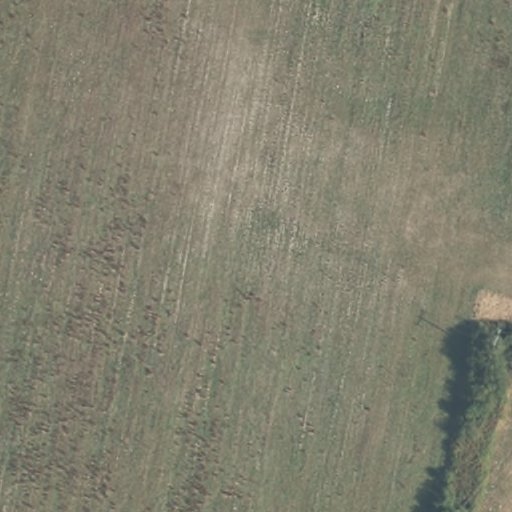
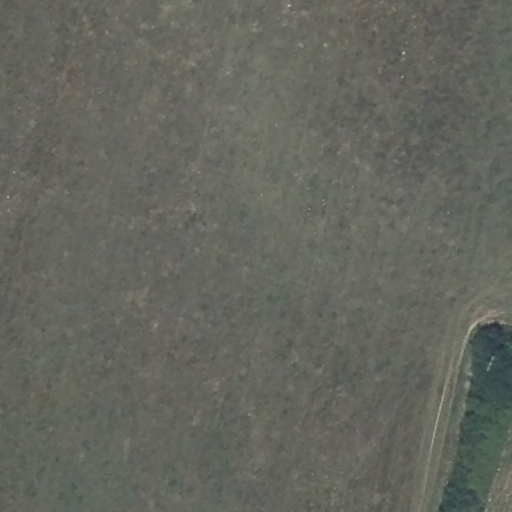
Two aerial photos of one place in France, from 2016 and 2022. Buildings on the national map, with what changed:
[]

